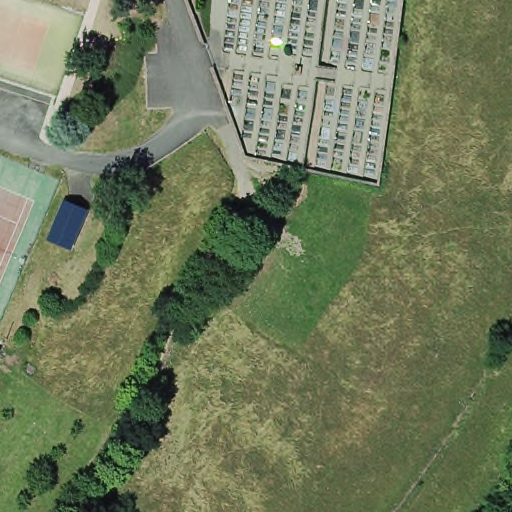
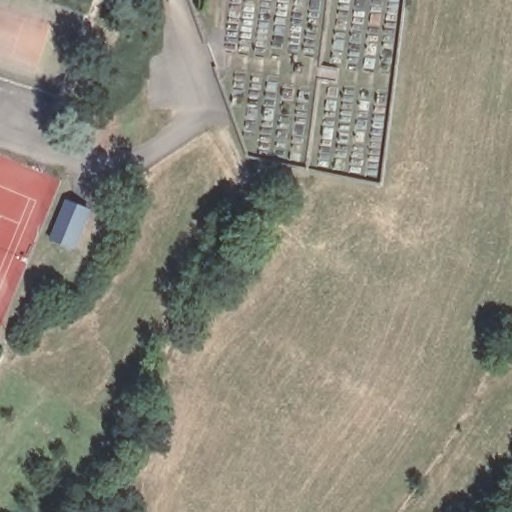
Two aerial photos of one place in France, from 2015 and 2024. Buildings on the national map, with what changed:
unchanged [(80,247),(55,235),(67,208),(92,218),(80,247)]

